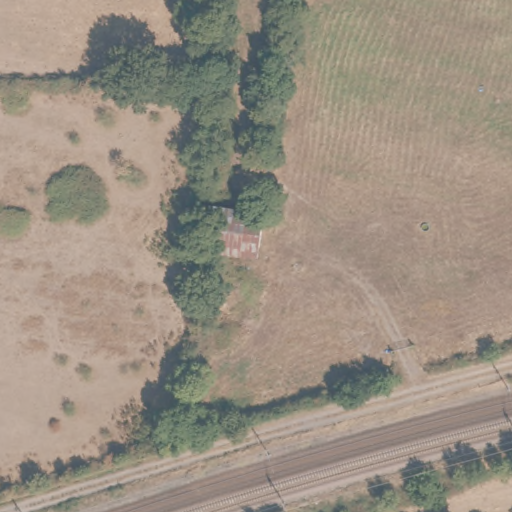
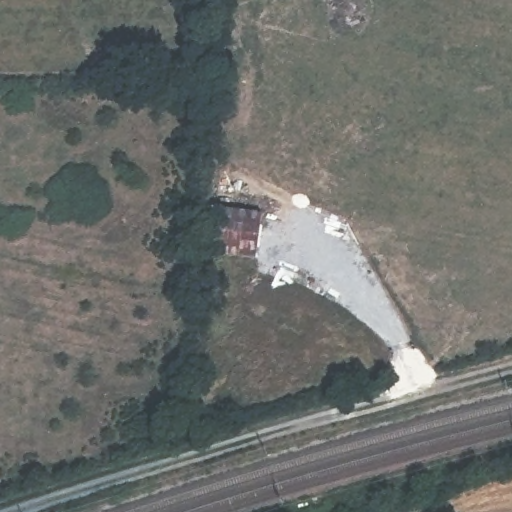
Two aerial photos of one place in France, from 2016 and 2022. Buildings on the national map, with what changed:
unchanged [(210,261),(218,209),(270,217),(260,269),(210,261)]

